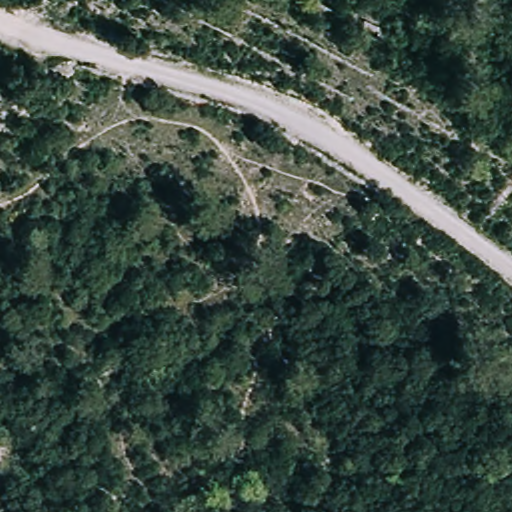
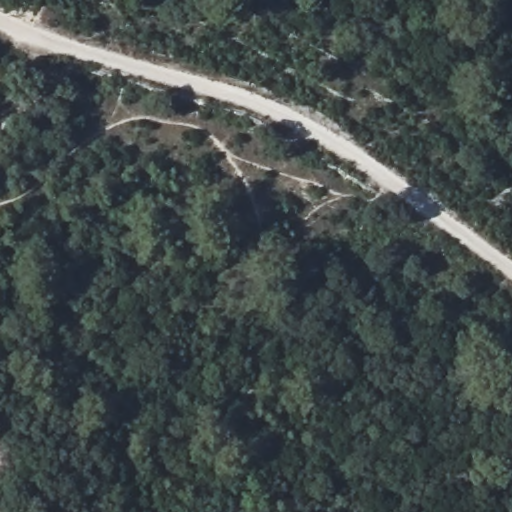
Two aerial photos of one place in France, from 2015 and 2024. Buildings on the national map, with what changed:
unchanged [(387,19),(379,37),(359,27),(368,9),(387,19)]

